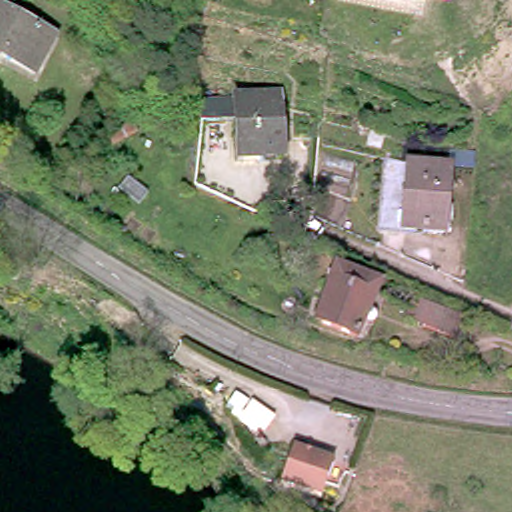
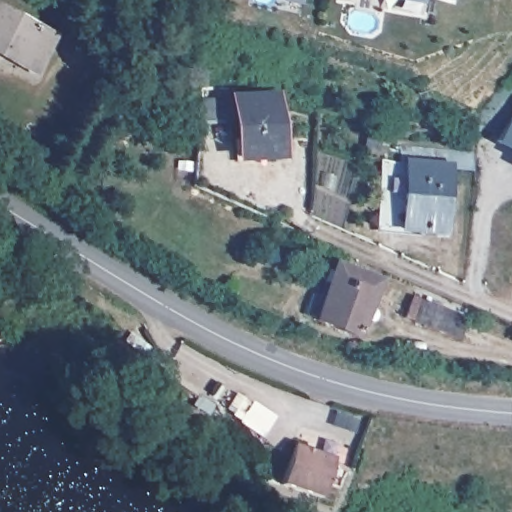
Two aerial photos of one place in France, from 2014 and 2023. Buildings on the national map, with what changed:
unchanged [(380,0),(418,0),(418,7),(380,0)]
unchanged [(445,0),(454,0),(454,1),(445,0)]
unchanged [(33,70),(0,52),(0,5),(52,35),(33,70)]
unchanged [(286,95),(289,154),(249,155),(248,118),(209,119),(211,99),(286,95)]
new [(512,115),(512,148),(498,140),(512,115)]
unchanged [(449,164),(443,232),(402,228),(408,161),(449,164)]
unchanged [(473,172),(469,202),(457,200),(459,170),(473,172)]
unchanged [(379,279),(356,337),(311,318),(336,260),(379,279)]
unchanged [(467,317),(457,339),(412,320),(420,298),(467,317)]
unchanged [(333,460),(320,500),(279,487),(291,447),(333,460)]

